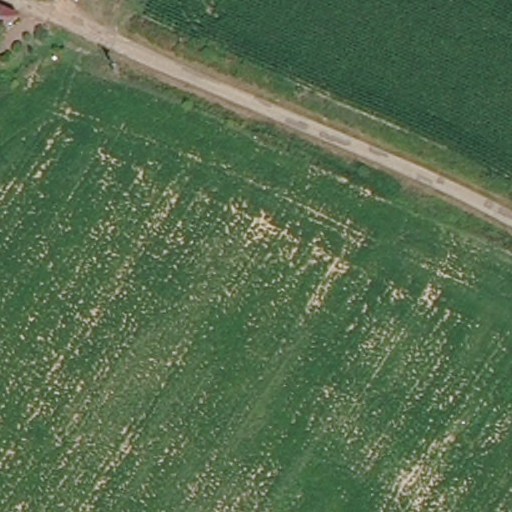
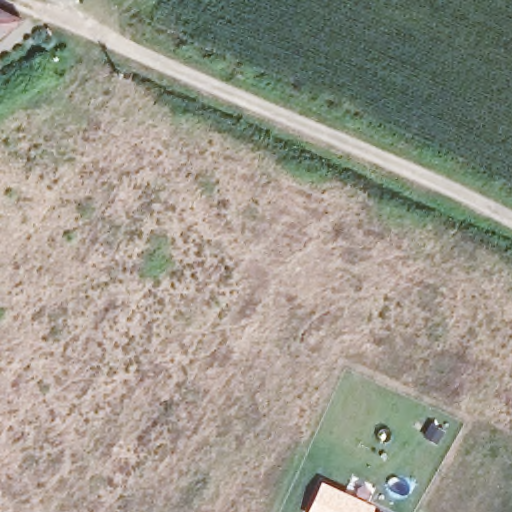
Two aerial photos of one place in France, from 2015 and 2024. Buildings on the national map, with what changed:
unchanged [(0,36),(0,6),(25,16),(0,36)]
new [(376,506),(373,512),(306,512),(321,480),(376,506)]

